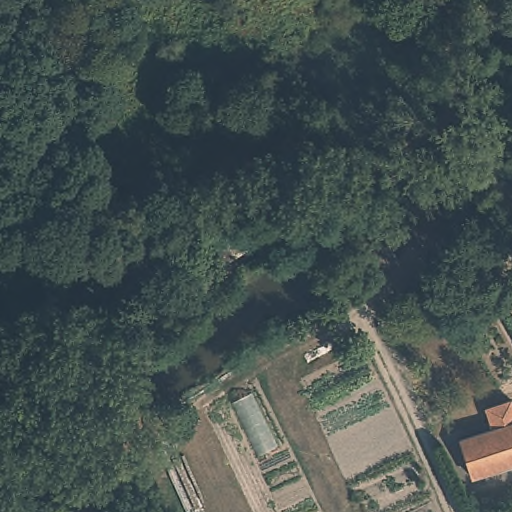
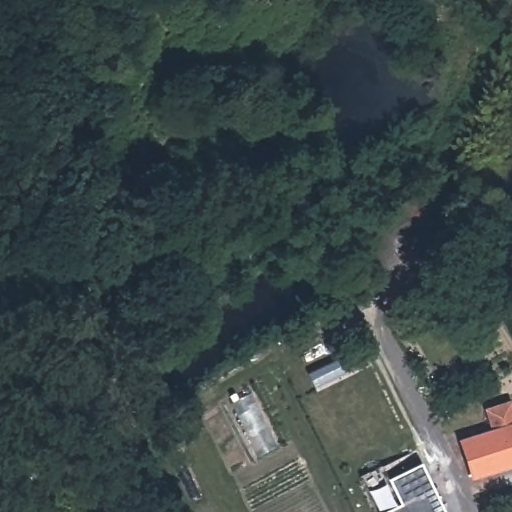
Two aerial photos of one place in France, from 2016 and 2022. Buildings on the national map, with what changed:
unchanged [(346,242),(357,234),(426,189),(469,255),(442,274),(416,232),(375,259),(362,268),(346,242)]
unchanged [(280,229),(252,246),(244,233),(271,216),(280,229)]
unchanged [(461,440),(512,423),(512,465),(472,477),(461,440)]
new [(400,503),(387,478),(421,461),(445,512),(380,512),(400,503)]

